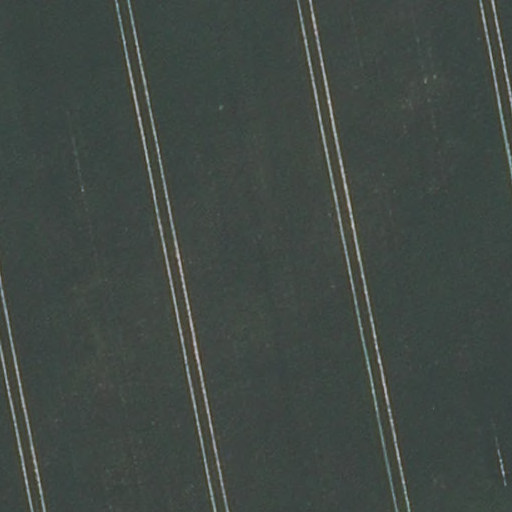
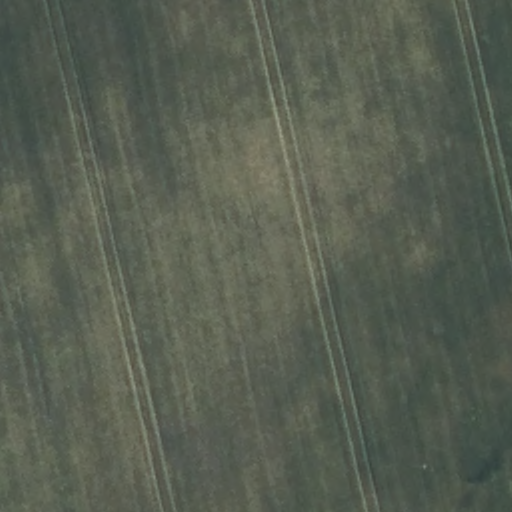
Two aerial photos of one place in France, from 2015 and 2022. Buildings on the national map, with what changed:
[]

